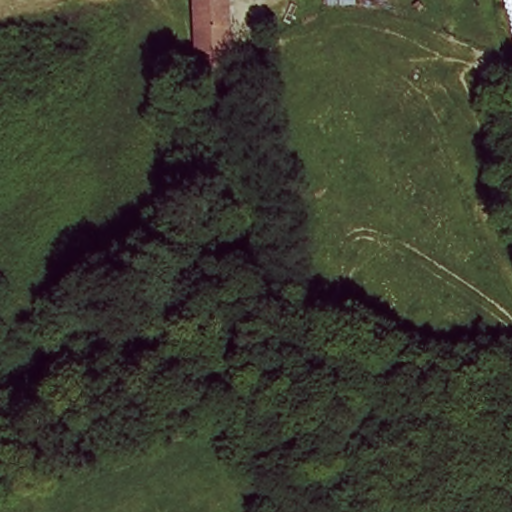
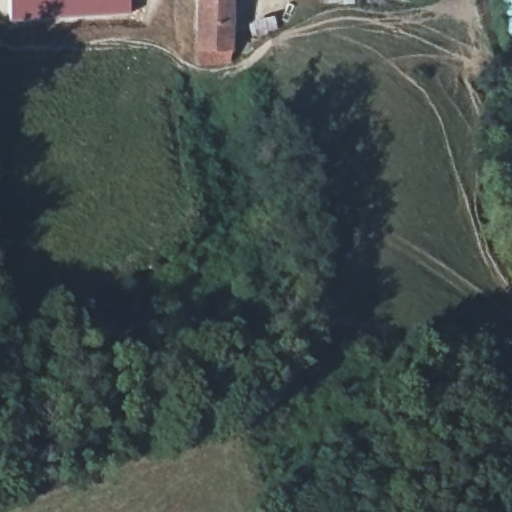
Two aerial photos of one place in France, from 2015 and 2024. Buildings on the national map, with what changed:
new [(9,23),(7,0),(130,0),(131,14),(9,23)]
unchanged [(199,65),(198,0),(233,0),(234,65),(199,65)]

